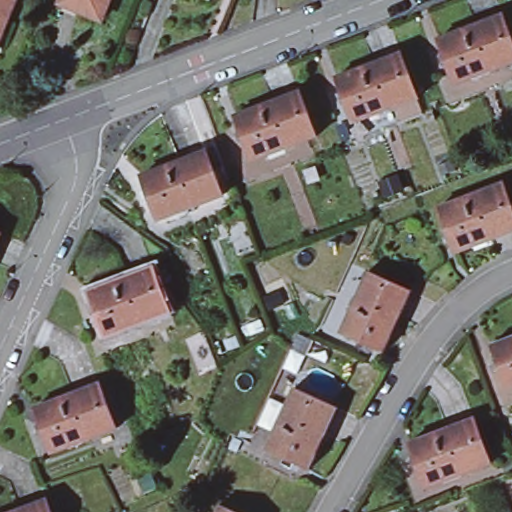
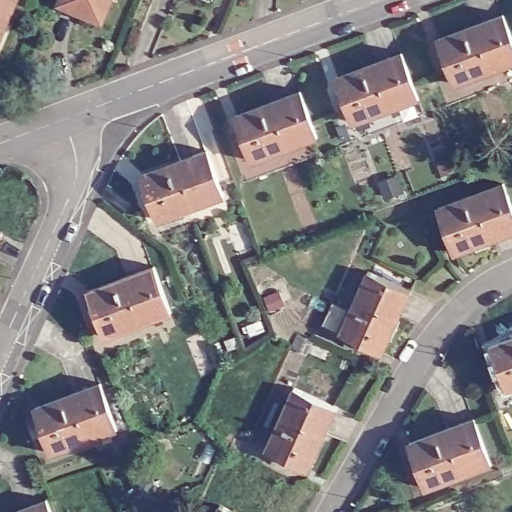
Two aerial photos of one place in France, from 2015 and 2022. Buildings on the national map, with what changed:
unchanged [(0,43),(0,0),(18,0),(0,43)]
unchanged [(102,21),(60,3),(61,0),(111,0),(102,21)]
unchanged [(512,46),(512,64),(454,86),(437,42),(502,17),(512,46)]
unchanged [(400,55),(417,100),(352,124),(337,79),(400,55)]
unchanged [(300,92),(316,137),(252,161),(235,117),(300,92)]
unchanged [(206,152),(222,198),(160,221),(144,175),(206,152)]
unchanged [(512,212),(512,232),(455,254),(438,208),(502,185),(512,212)]
unchanged [(2,232),(1,235),(0,237),(0,231),(2,232)]
unchanged [(155,267),(172,313),(105,338),(89,292),(155,267)]
unchanged [(410,293),(381,355),(338,334),(367,272),(410,293)]
unchanged [(512,389),(507,391),(490,347),(512,338),(512,389)]
unchanged [(100,385),(116,430),(52,452),(35,408),(100,385)]
unchanged [(336,408),(305,471),(263,450),(293,388),(336,408)]
unchanged [(470,420),(487,466),(425,488),(408,445),(470,420)]
unchanged [(50,512),(14,512),(46,501),(50,512)]
unchanged [(216,512),(220,504),(236,512),(216,512)]

